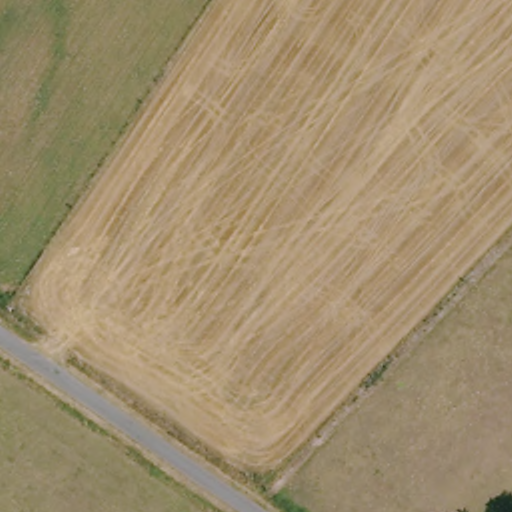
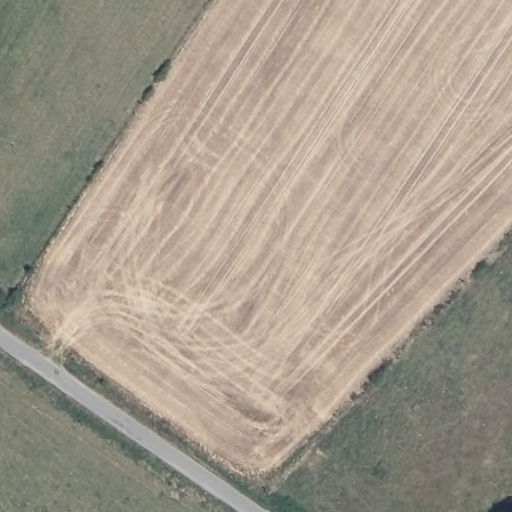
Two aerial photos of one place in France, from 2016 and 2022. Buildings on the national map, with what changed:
[]

